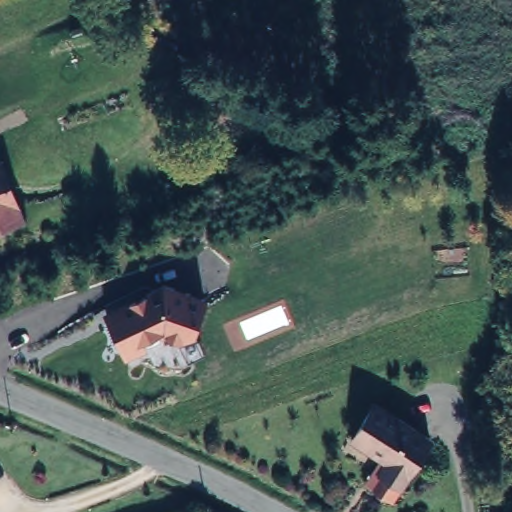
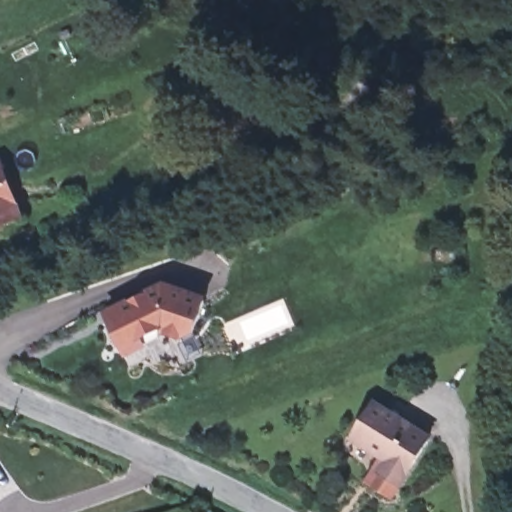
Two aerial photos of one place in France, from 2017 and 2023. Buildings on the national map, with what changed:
unchanged [(0,154),(2,154),(19,201),(22,212),(0,220),(0,154)]
unchanged [(161,283),(207,297),(197,334),(179,340),(165,336),(124,355),(102,311),(161,283)]
unchanged [(431,435),(401,486),(380,472),(387,458),(351,438),(374,400),(431,435)]

